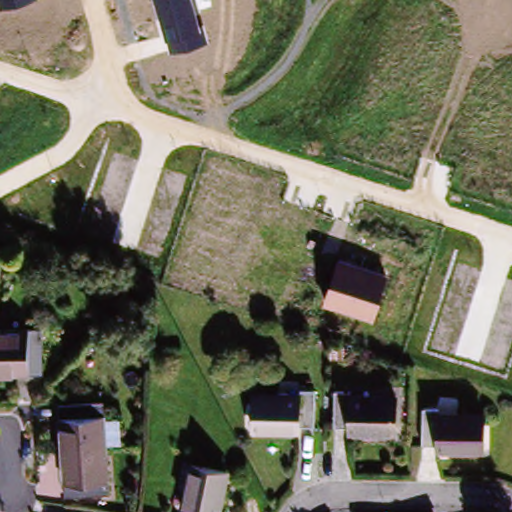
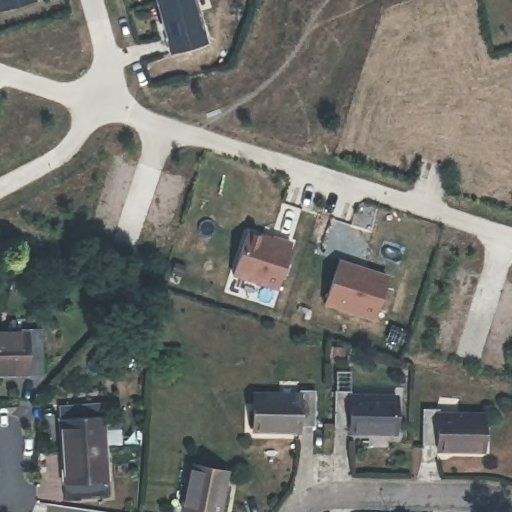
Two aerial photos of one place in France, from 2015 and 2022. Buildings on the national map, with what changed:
unchanged [(38,0),(0,12),(0,0),(38,0)]
unchanged [(155,0),(193,0),(201,29),(207,45),(170,55),(165,39),(155,0)]
new [(247,230),(272,239),(274,237),(290,242),(274,287),(232,272),(247,230)]
unchanged [(374,322),(322,305),(338,259),(388,275),(374,322)]
unchanged [(45,328),(45,370),(0,370),(0,329),(45,328)]
unchanged [(311,426),(297,426),(297,431),(255,430),(255,397),(298,396),(298,389),(314,389),(311,426)]
unchanged [(406,430),(358,431),(358,426),(346,426),(347,391),(362,391),(362,396),(407,397),(406,430)]
unchanged [(61,407),(105,406),(106,447),(63,450),(61,407)]
unchanged [(492,453),(443,453),(444,449),(432,448),(433,413),(445,413),(447,420),(492,420),(492,453)]
unchanged [(106,447),(107,496),(65,499),(63,450),(106,447)]
unchanged [(190,512),(197,467),(232,473),(225,512),(190,512)]

